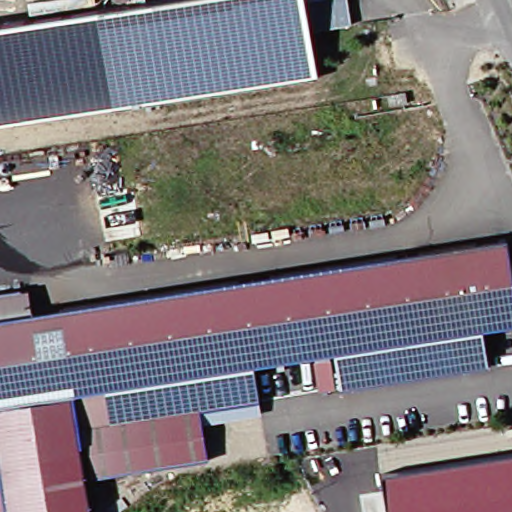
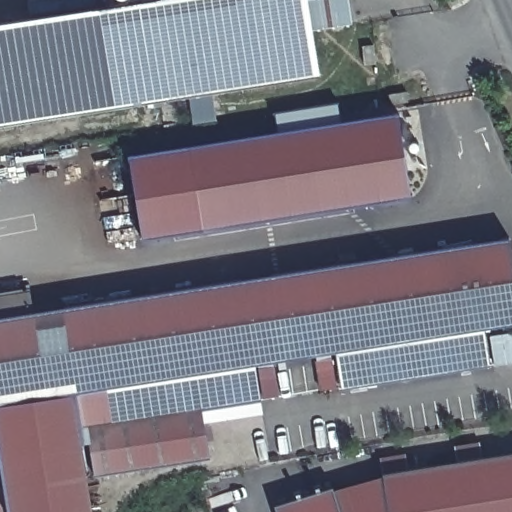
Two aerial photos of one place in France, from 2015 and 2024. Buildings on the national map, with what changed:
unchanged [(148,0),(349,0),(352,22),(316,29),(322,72),(0,123),(0,23),(148,0)]
unchanged [(425,82),(426,93),(408,97),(406,86),(425,82)]
new [(399,118),(412,202),(143,240),(130,157),(399,118)]
unchanged [(24,287),(27,312),(391,254),(510,235),(512,251),(512,318),(483,322),(491,360),(341,386),(335,348),(255,363),(260,398),(200,407),(209,457),(93,477),(85,427),(80,427),(94,512),(7,512),(0,469),(0,291),(24,287)]
new [(383,477),(512,455),(512,512),(342,512),(335,490),(383,477)]
new [(342,512),(280,512),(278,506),(335,490),(342,512)]

